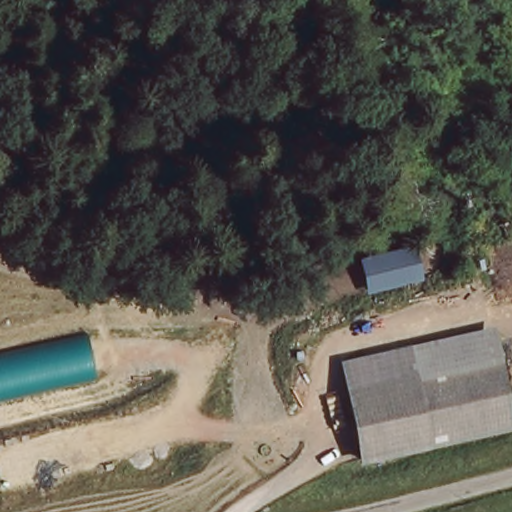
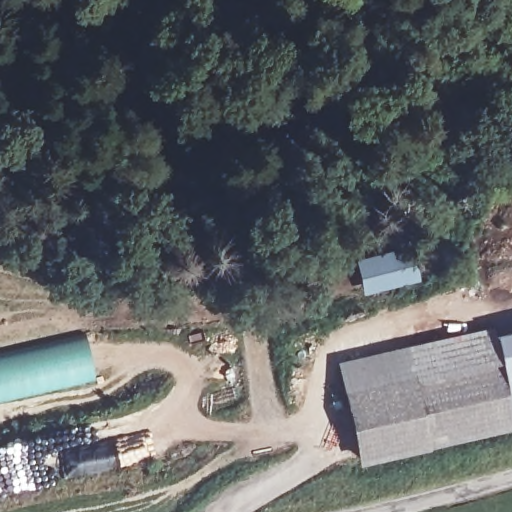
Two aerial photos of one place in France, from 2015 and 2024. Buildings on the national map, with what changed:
unchanged [(353,262),(408,247),(419,281),(362,297),(353,262)]
unchanged [(363,457),(343,363),(395,351),(490,330),(510,425),(465,436),(363,457)]
unchanged [(96,380),(0,403),(0,353),(87,334),(96,380)]

